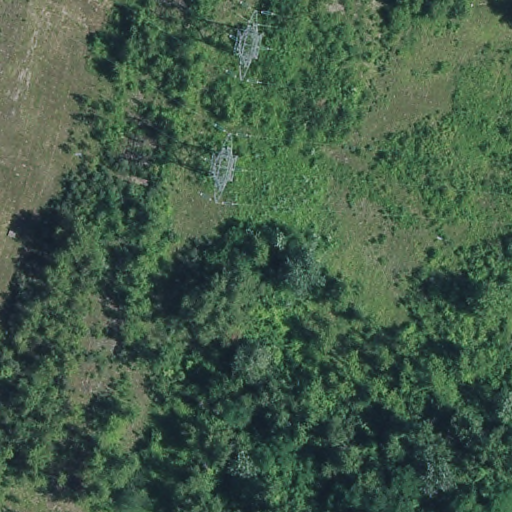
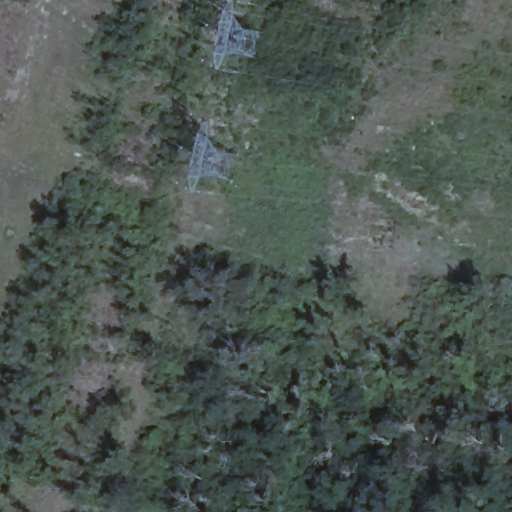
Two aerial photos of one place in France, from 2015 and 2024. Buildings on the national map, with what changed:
[]

